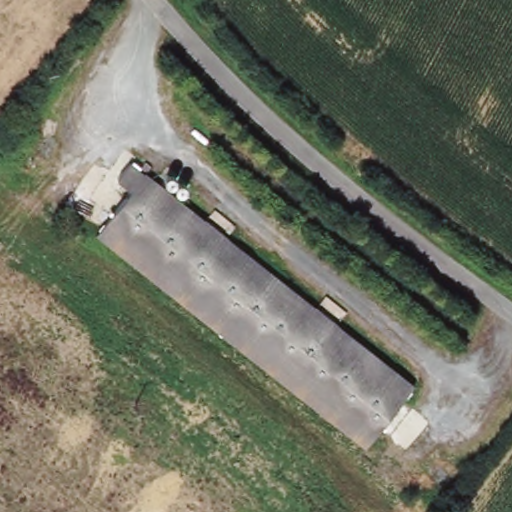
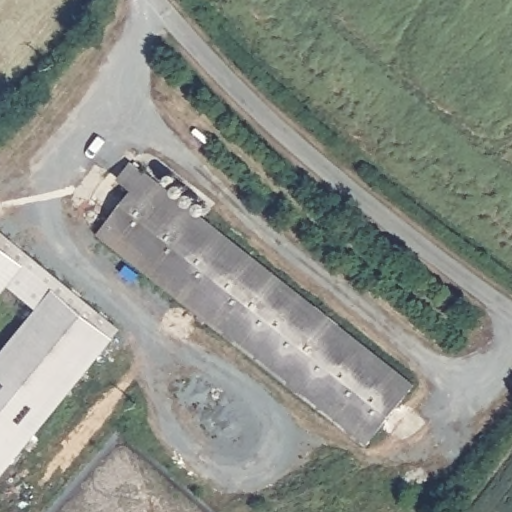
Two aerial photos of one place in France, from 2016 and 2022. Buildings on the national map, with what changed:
unchanged [(138,189),(122,175),(136,159),(410,389),(358,449),(101,234),(138,189)]
new [(120,327),(115,336),(0,477),(0,352),(37,307),(7,285),(0,294),(0,228),(120,327)]

